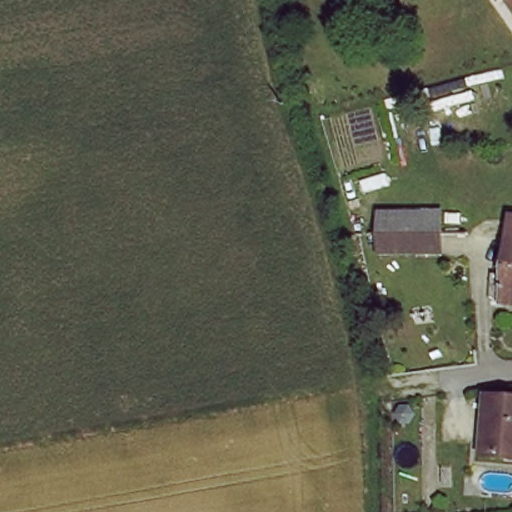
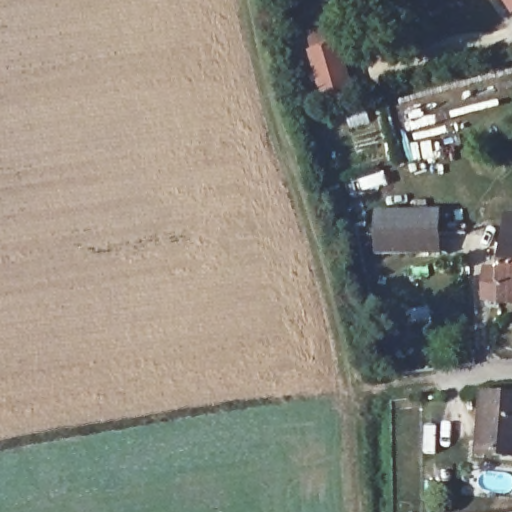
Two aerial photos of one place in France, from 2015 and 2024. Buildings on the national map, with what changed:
unchanged [(509,0),(512,0),(512,4),(509,0)]
new [(311,51),(306,32),(331,26),(336,48),(340,46),(354,90),(321,100),(308,52),(311,51)]
unchanged [(371,212),(432,207),(433,229),(421,228),(371,232),(371,212)]
unchanged [(495,308),(483,306),(485,274),(497,275),(500,241),(501,220),(512,220),(512,309),(495,308)]
unchanged [(371,232),(421,228),(433,229),(433,246),(373,250),(371,232)]
unchanged [(498,450),(475,447),(480,390),(512,393),(512,452),(498,450)]

